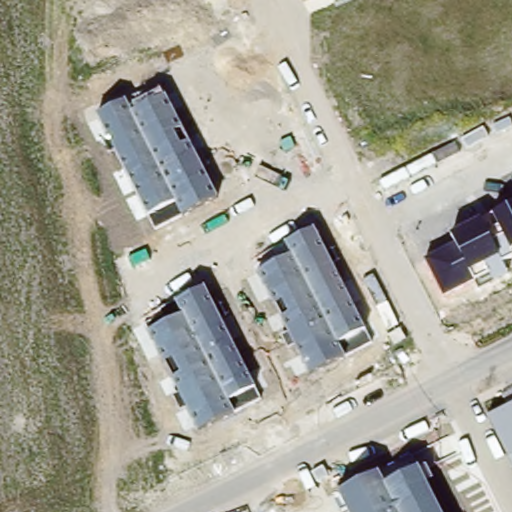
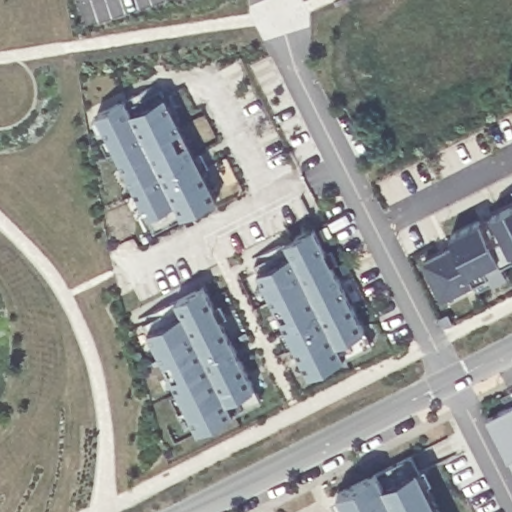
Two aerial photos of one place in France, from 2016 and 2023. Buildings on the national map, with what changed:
unchanged [(94,116),(123,101),(129,114),(165,95),(217,199),(182,218),(153,230),(147,217),(94,116)]
unchanged [(453,244),(448,234),(512,202),(512,261),(503,267),(509,278),(494,287),(488,275),(442,299),(422,260),(453,244)]
unchanged [(257,272),(291,254),(285,242),(315,227),(365,329),(370,342),(345,357),(309,376),(257,272)]
unchanged [(147,334),(181,317),(173,301),(205,287),(253,389),(260,401),(234,414),(197,434),(147,334)]
unchanged [(512,402),(512,463),(488,416),(512,402)]
unchanged [(338,494),(377,473),(383,485),(416,467),(439,512),(347,512),(338,494)]

